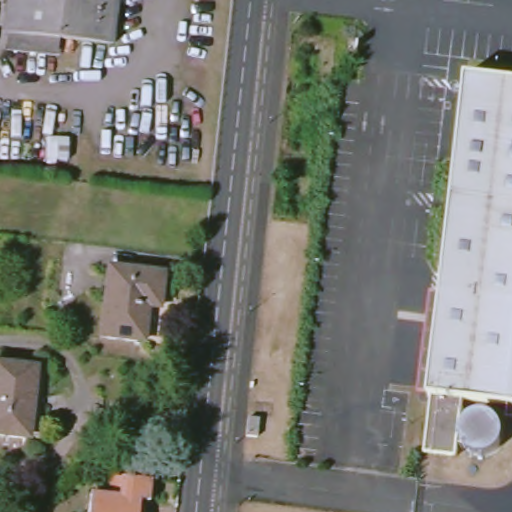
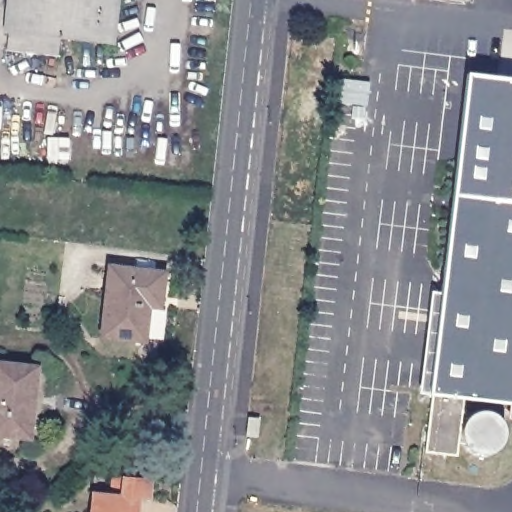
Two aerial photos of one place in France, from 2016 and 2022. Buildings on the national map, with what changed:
unchanged [(7,0),(117,0),(113,44),(4,32),(7,0)]
unchanged [(512,75),(512,400),(463,394),(430,391),(428,390),(465,69),(512,75)]
unchanged [(163,273),(160,298),(159,308),(147,307),(143,341),(101,337),(109,268),(163,273)]
unchanged [(0,436),(0,364),(36,367),(34,387),(29,387),(24,438),(0,436)]
unchanged [(456,452),(424,447),(430,391),(463,394),(456,452)]
unchanged [(258,419),(256,438),(246,437),(248,418),(258,419)]
unchanged [(91,498),(110,500),(110,493),(112,480),(151,485),(149,498),(148,504),(139,502),(138,512),(89,512),(91,498)]

